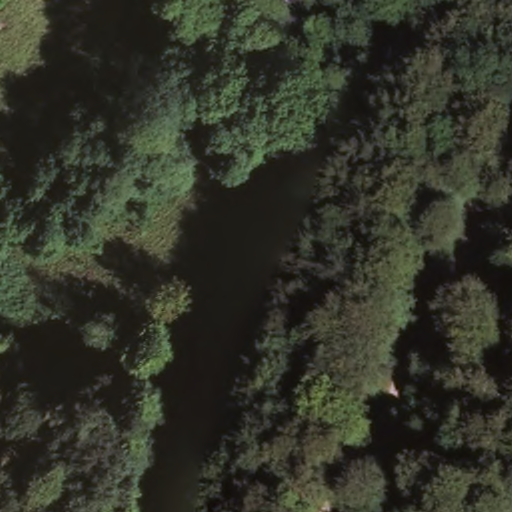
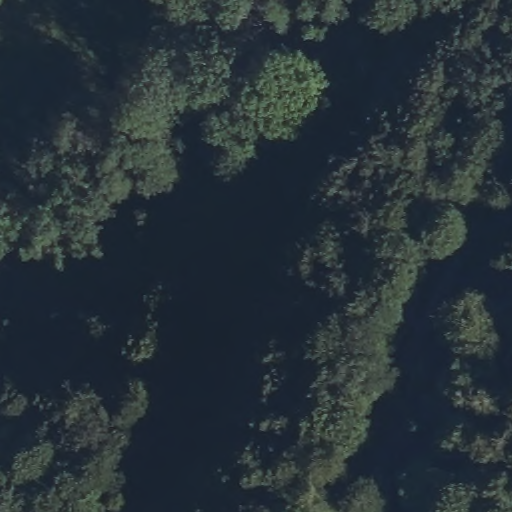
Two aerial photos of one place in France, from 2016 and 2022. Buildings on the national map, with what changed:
unchanged [(205,0),(232,0),(277,21),(259,55),(194,24),(205,0)]

